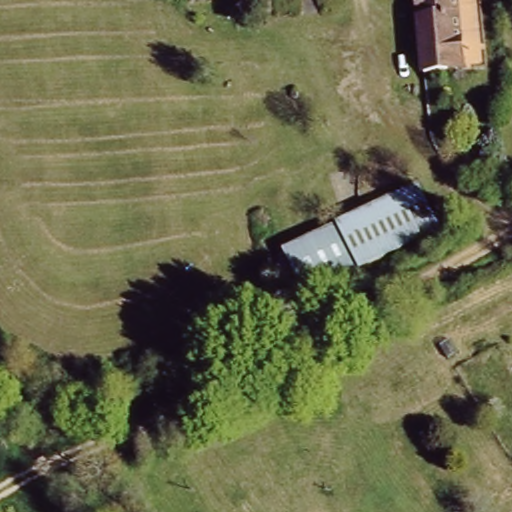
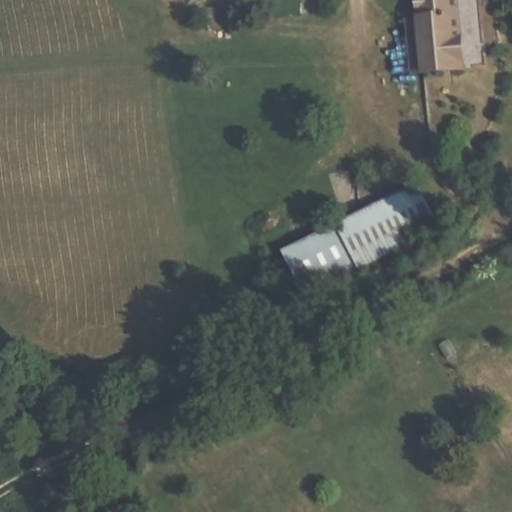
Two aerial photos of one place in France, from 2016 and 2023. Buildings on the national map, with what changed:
unchanged [(456,0),(462,66),(403,71),(396,0),(456,0)]
unchanged [(417,185),(439,229),(312,300),(280,247),(417,185)]

